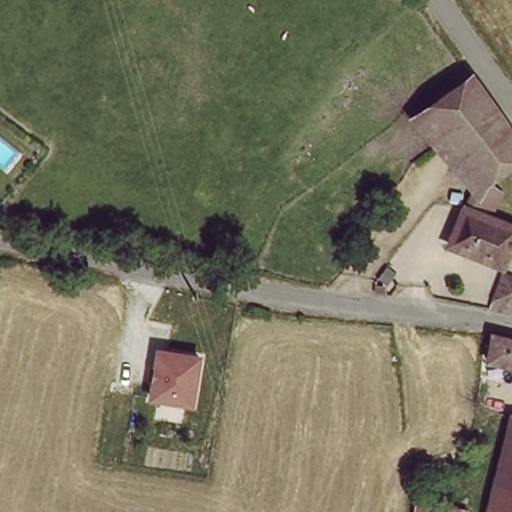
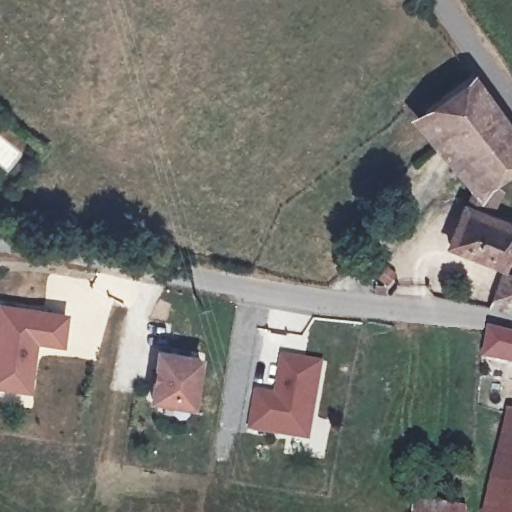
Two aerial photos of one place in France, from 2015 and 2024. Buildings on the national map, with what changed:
unchanged [(484,176),(425,109),(473,76),(512,135),(512,159),(484,176)]
unchanged [(500,185),(493,206),(512,217),(512,239),(503,261),(449,235),(466,196),(484,176),(500,185)]
unchanged [(499,277),(512,281),(512,306),(509,305),(506,313),(489,310),(499,277)]
new [(0,392),(0,313),(64,322),(60,350),(34,346),(30,380),(28,395),(15,394),(0,392)]
unchanged [(503,365),(489,363),(490,355),(493,337),(507,340),(512,341),(512,366),(503,365)]
unchanged [(196,408),(148,401),(155,346),(203,353),(196,408)]
new [(309,444),(252,435),(259,400),(278,403),(284,365),(321,370),(309,444)]
unchanged [(512,487),(512,512),(505,512),(512,487)]
unchanged [(415,505),(455,512),(414,512),(415,505)]

